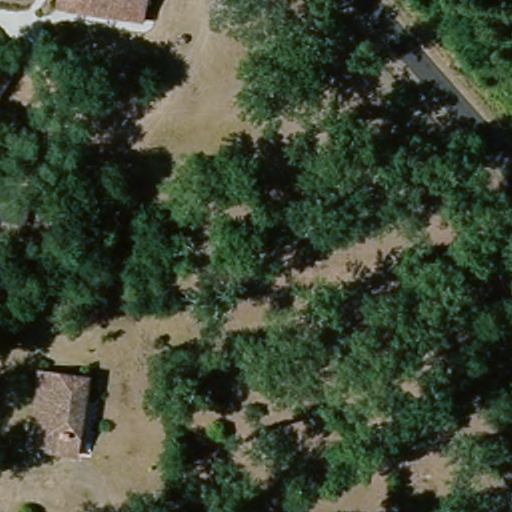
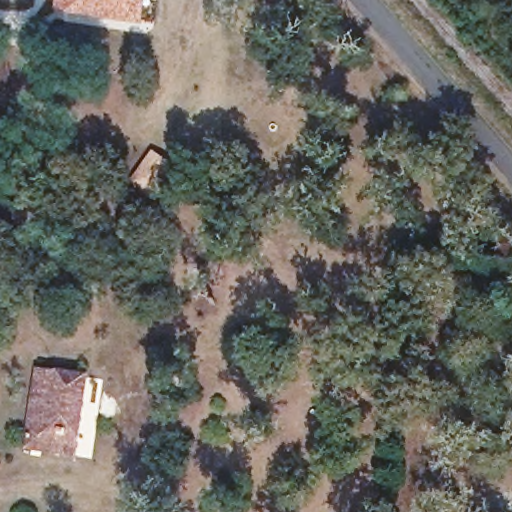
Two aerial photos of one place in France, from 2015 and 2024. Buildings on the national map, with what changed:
unchanged [(76,9),(63,9),(65,0),(147,0),(145,17),(76,9)]
unchanged [(81,458),(31,450),(42,372),(91,381),(81,458)]

